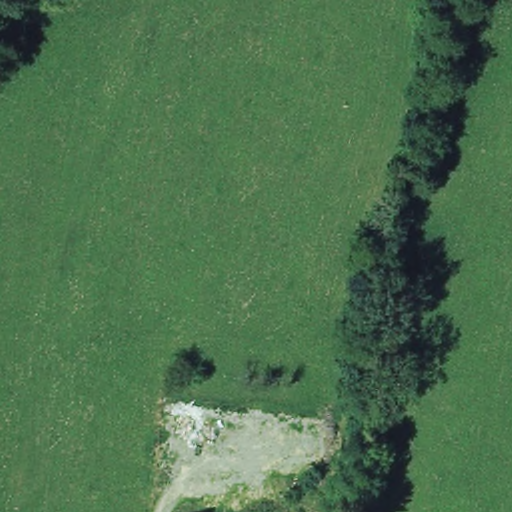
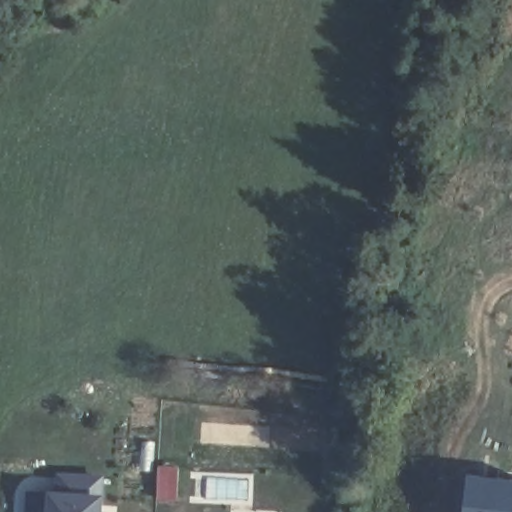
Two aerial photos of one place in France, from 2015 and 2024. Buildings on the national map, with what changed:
new [(157,465),(179,466),(176,502),(155,501),(157,465)]
new [(23,493),(52,495),(53,473),(103,476),(102,500),(100,500),(99,512),(22,512),(23,493)]
new [(512,479),(512,512),(462,512),(466,473),(512,479)]

